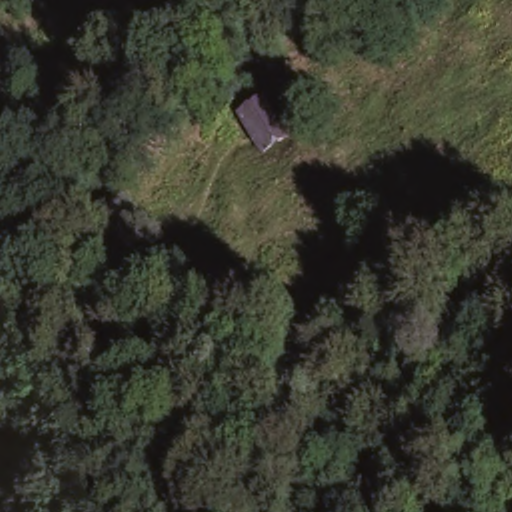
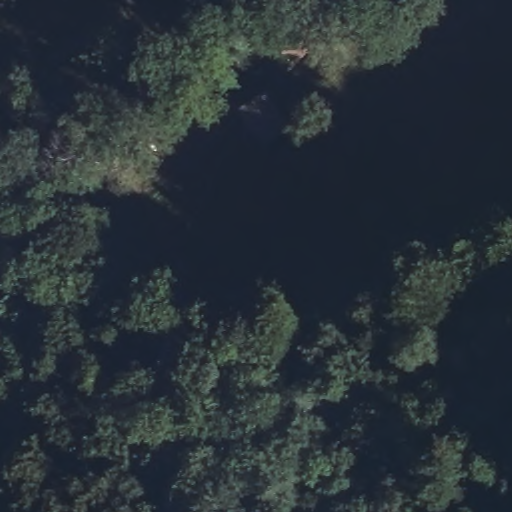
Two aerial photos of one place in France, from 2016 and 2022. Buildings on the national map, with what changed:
unchanged [(259,88),(285,123),(255,143),(229,107),(259,88)]

